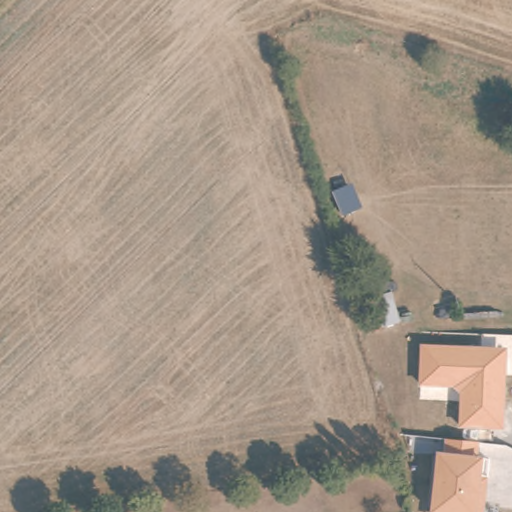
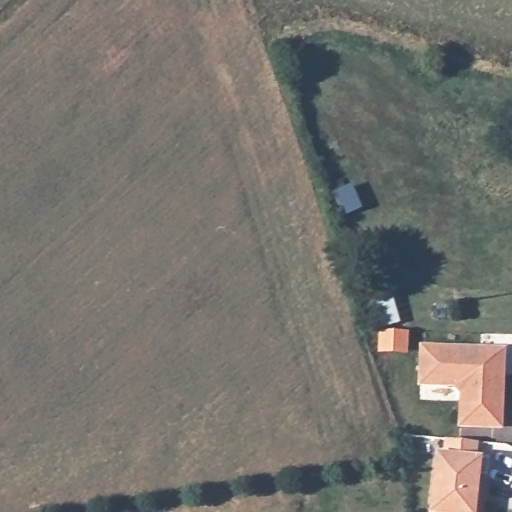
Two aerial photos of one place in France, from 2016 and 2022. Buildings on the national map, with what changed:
unchanged [(458,427),(458,394),(450,387),(418,385),(418,343),(501,349),(504,430),(458,427)]
unchanged [(476,512),(431,512),(437,455),(481,459),(476,512)]

